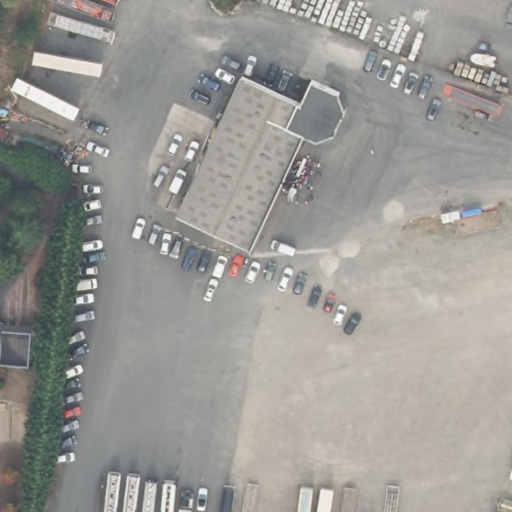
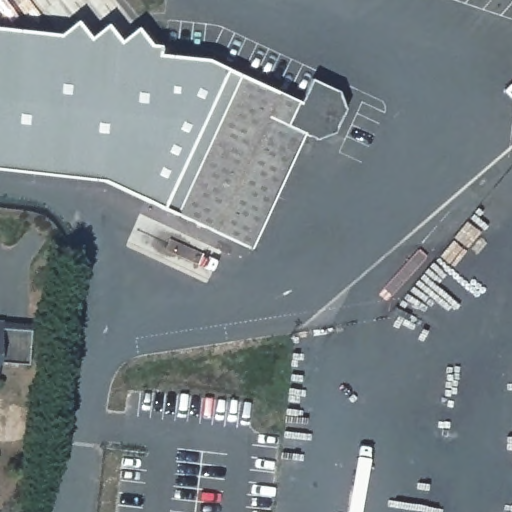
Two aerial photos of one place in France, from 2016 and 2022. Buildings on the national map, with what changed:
new [(191,188),(174,181),(142,167),(130,194),(105,181),(0,169),(0,27),(60,34),(78,19),(90,37),(108,22),(120,40),(137,26),(151,44),(160,44),(160,53),(207,58),(228,68),(239,74),(191,188)]
unchanged [(130,194),(142,167),(191,188),(239,74),(301,102),(312,78),(340,91),(344,107),(334,135),(315,140),(301,134),(251,248),(130,194)]
unchanged [(0,367),(0,323),(3,327),(30,330),(28,369),(0,367)]
demolished [(333,393),(329,411),(298,403),(310,347),(391,367),(383,405),(333,393)]

